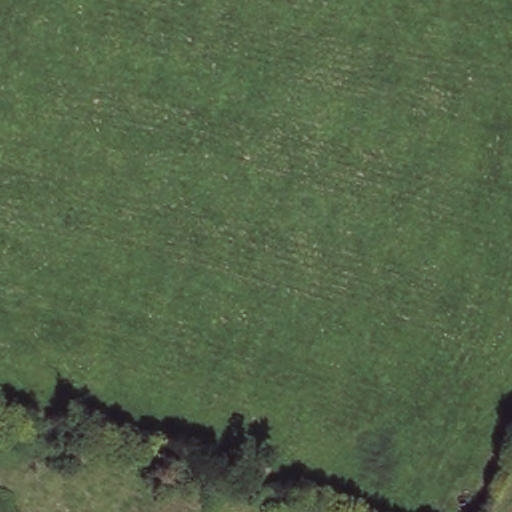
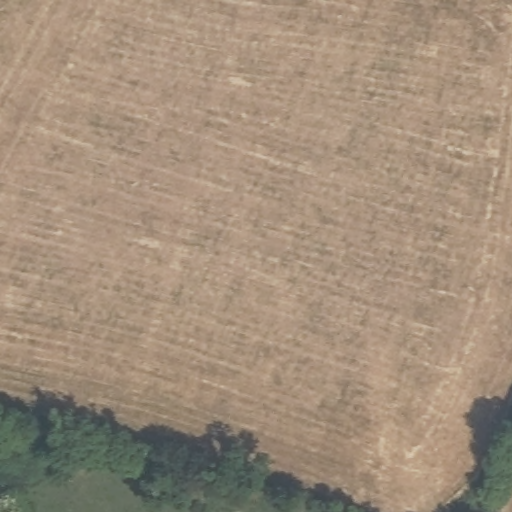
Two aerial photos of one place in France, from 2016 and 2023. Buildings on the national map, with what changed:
unchanged [(2,450),(0,450),(0,430),(6,431),(2,450)]

